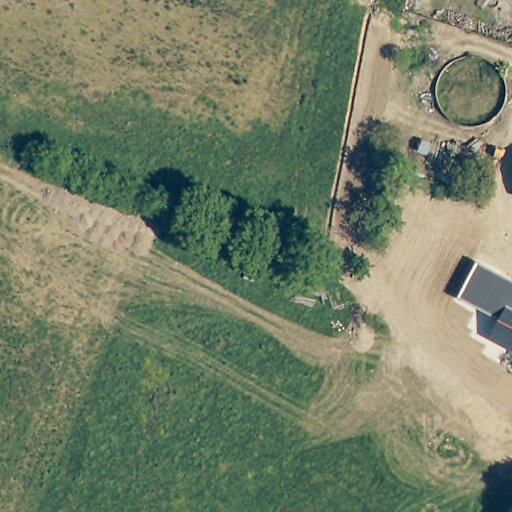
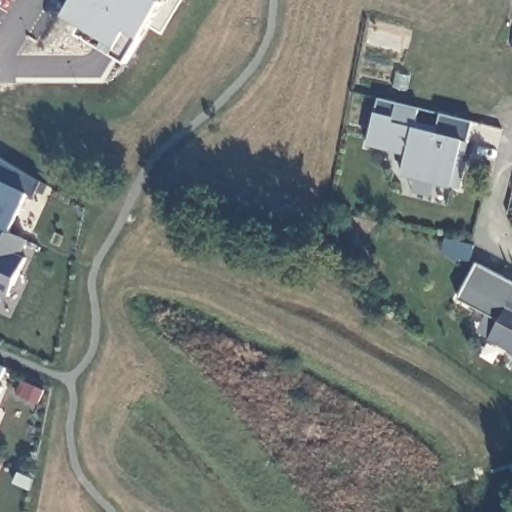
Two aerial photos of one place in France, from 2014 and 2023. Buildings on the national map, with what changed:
new [(130,61),(80,34),(86,26),(66,15),(74,0),(165,0),(143,37),(130,61)]
new [(401,175),(406,155),(367,146),(379,99),(421,108),(418,121),(439,125),(442,114),(475,121),(458,190),(401,175)]
new [(0,291),(0,160),(1,159),(41,181),(34,195),(27,191),(11,231),(28,238),(22,252),(27,255),(10,296),(0,291)]
demolished [(488,220),(482,249),(454,242),(461,214),(488,220)]
unchanged [(503,306),(497,318),(458,298),(478,263),(512,282),(512,300),(507,297),(503,306)]
demolished [(423,278),(417,298),(379,286),(385,267),(423,278)]
unchanged [(512,344),(490,333),(507,297),(512,300),(512,344)]
new [(7,367),(0,383),(0,364),(7,367)]
new [(6,386),(0,399),(0,384),(6,386)]

